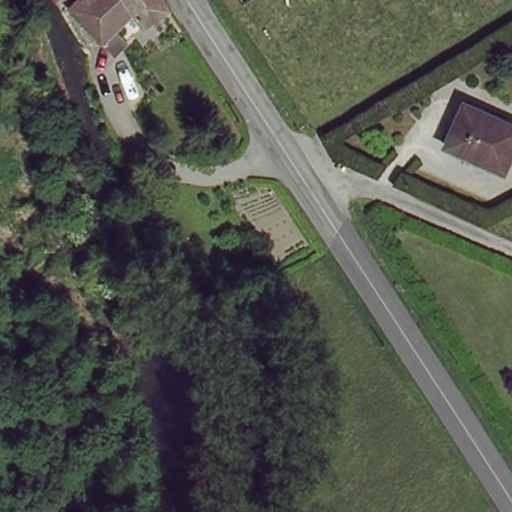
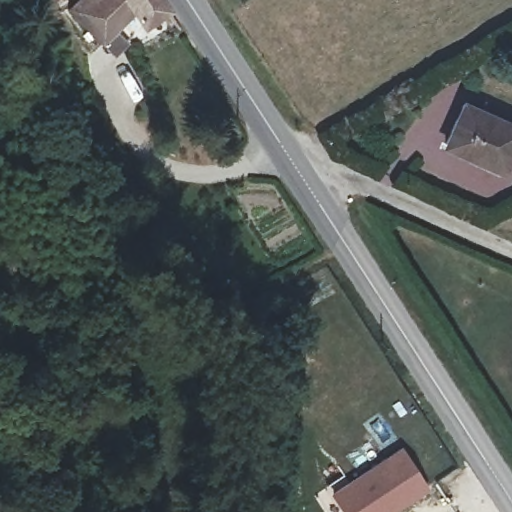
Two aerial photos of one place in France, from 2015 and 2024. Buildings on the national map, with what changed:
unchanged [(49,0),(57,0),(50,4),(49,0)]
unchanged [(170,8),(148,25),(140,16),(93,52),(91,49),(85,43),(75,44),(71,40),(70,35),(73,30),(66,10),(77,0),(165,0),(170,8)]
demolished [(143,86),(155,80),(165,97),(143,111),(132,93),(143,86)]
unchanged [(463,111),(512,133),(512,155),(502,176),(444,151),(463,111)]
new [(424,488),(387,512),(345,512),(333,493),(400,450),(424,488)]

